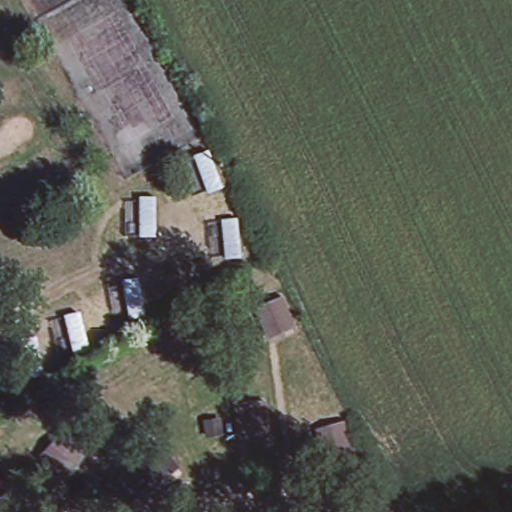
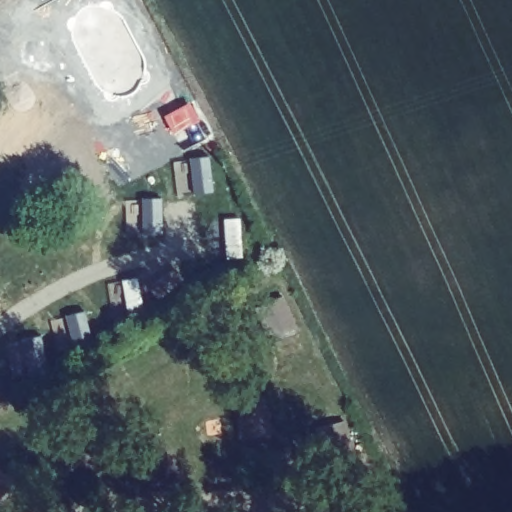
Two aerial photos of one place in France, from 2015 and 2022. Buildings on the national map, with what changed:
unchanged [(153,286),(174,269),(183,280),(162,297),(153,286)]
unchanged [(299,331),(278,339),(267,313),(286,306),(299,331)]
unchanged [(267,402),(269,431),(241,433),(238,404),(267,402)]
unchanged [(209,435),(208,420),(221,420),(222,435),(209,435)]
unchanged [(359,455),(331,462),(323,435),(345,429),(359,455)]
unchanged [(41,455),(60,433),(82,452),(64,473),(41,455)]
unchanged [(153,483),(136,460),(159,442),(176,466),(153,483)]
unchanged [(13,478),(0,491),(0,467),(13,478)]

